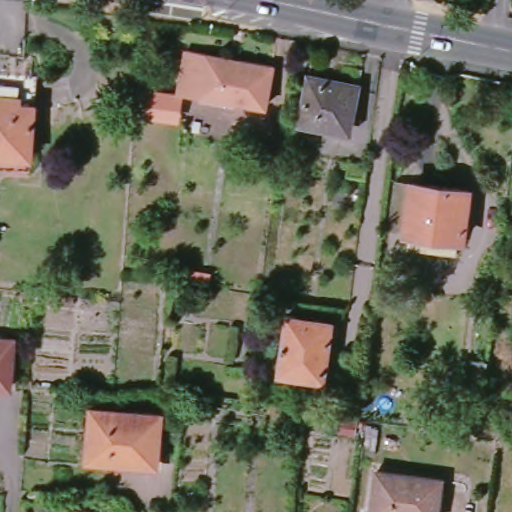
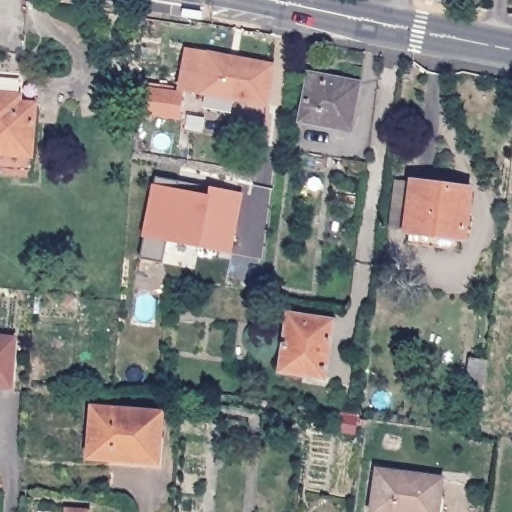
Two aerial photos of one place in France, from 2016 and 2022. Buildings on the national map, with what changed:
unchanged [(190,94),(197,53),(262,66),(255,106),(190,94)]
unchanged [(299,121),(308,74),(357,84),(351,123),(330,120),(329,127),(299,121)]
unchanged [(0,160),(0,77),(37,80),(32,162),(0,160)]
new [(137,96),(178,100),(177,122),(135,119),(137,96)]
new [(145,238),(142,237),(153,185),(155,185),(157,177),(210,186),(243,194),(231,254),(167,239),(164,263),(141,259),(145,238)]
unchanged [(410,182),(467,191),(460,238),(404,230),(410,182)]
unchanged [(285,376),(292,320),(337,326),(330,373),(308,370),(307,380),(285,376)]
unchanged [(12,339),(10,388),(0,387),(0,338),(12,339)]
unchanged [(481,393),(465,391),(470,361),(485,362),(481,393)]
unchanged [(107,459),(85,458),(90,407),(111,407),(107,459)]
unchanged [(160,463),(152,462),(137,460),(137,465),(107,462),(107,459),(111,407),(157,410),(162,411),(160,463)]
unchanged [(375,470),(440,478),(437,512),(370,512),(375,470)]
unchanged [(65,508),(90,510),(90,512),(64,512),(65,508)]

